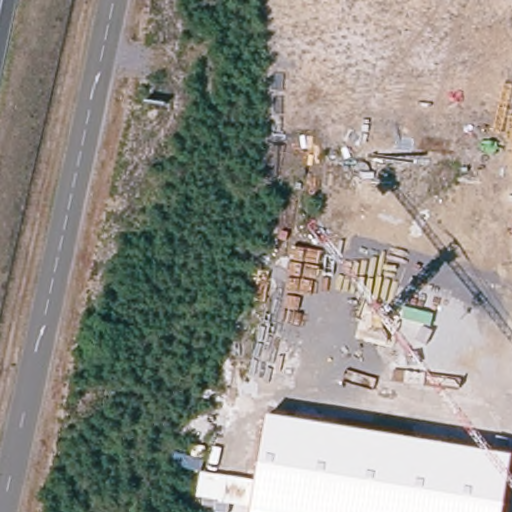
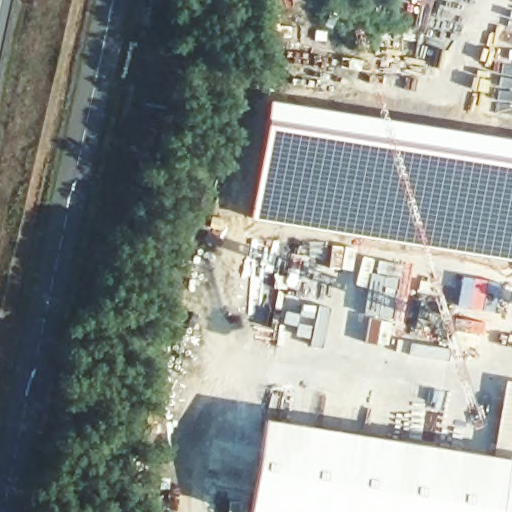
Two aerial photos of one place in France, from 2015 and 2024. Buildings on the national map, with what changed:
new [(260,159),(269,98),(512,137),(512,262),(497,258),(453,252),(251,219),(258,185),(260,159)]
new [(461,275),(490,282),(483,311),(455,306),(461,275)]
new [(510,388),(512,388),(512,438),(502,436),(510,388)]
unchanged [(511,457),(512,457),(512,512),(252,512),(267,417),(499,455),(511,457)]
new [(512,445),(512,457),(511,457),(499,455),(501,443),(512,445)]

